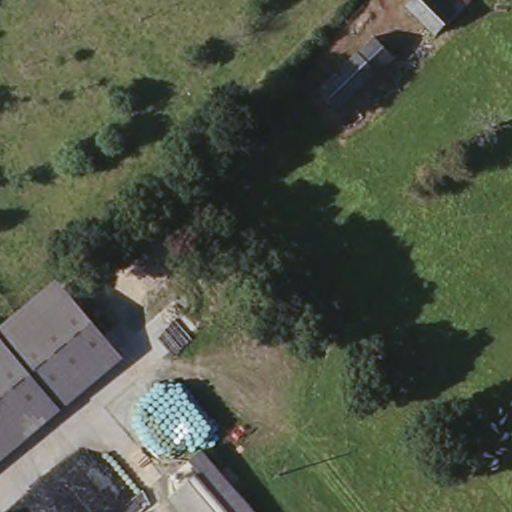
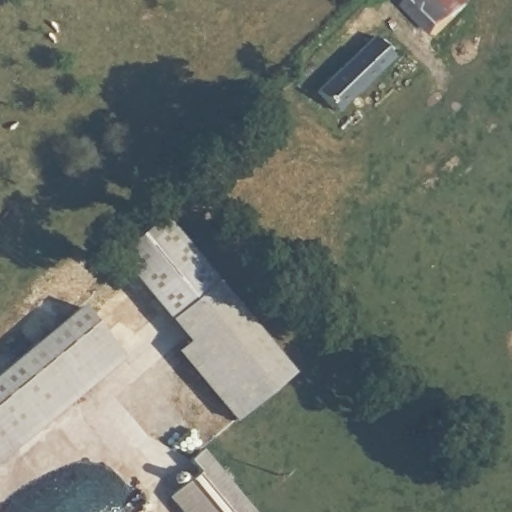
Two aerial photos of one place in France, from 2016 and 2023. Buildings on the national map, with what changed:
unchanged [(452,19),(432,0),(468,0),(470,3),(452,19)]
unchanged [(369,36),(389,54),(334,111),(313,93),(369,36)]
new [(177,349),(188,338),(167,315),(214,275),(294,372),(236,419),(177,349)]
unchanged [(80,298),(121,354),(0,466),(0,365),(80,298)]
unchanged [(189,470),(179,457),(193,446),(253,512),(187,512),(167,491),(189,470)]

